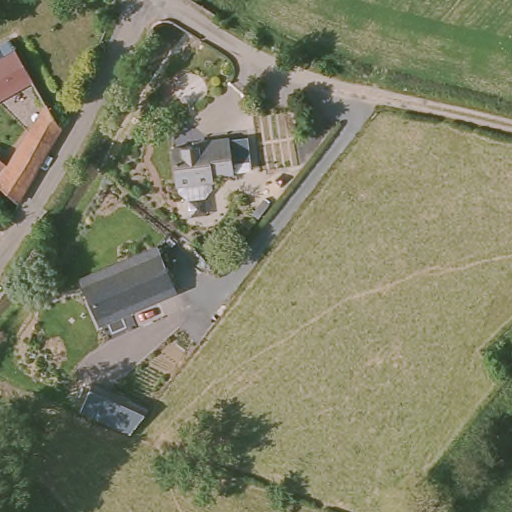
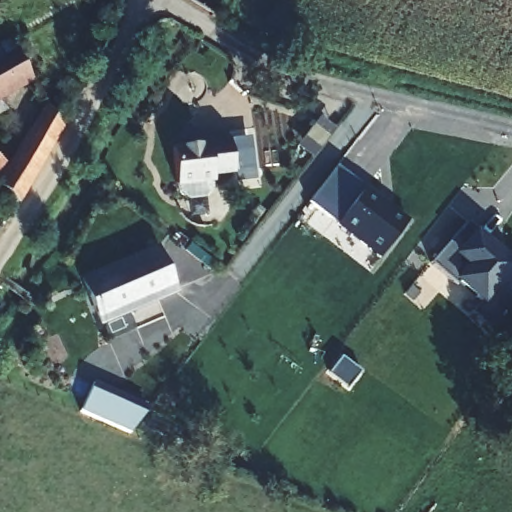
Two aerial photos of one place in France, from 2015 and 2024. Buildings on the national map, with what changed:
unchanged [(27,79),(0,95),(0,47),(7,44),(27,79)]
unchanged [(20,207),(0,189),(0,160),(5,164),(40,105),(66,128),(20,207)]
unchanged [(183,146),(182,141),(200,139),(201,144),(230,140),(247,138),(252,169),(214,174),(215,182),(210,182),(210,190),(202,197),(190,199),(180,192),(178,184),(172,147),(183,146)]
new [(366,187),(365,187),(336,226),(307,204),(335,167),(366,187)]
new [(336,226),(366,187),(409,220),(379,258),(336,226)]
new [(490,326),(476,313),(483,305),(437,265),(465,233),(468,237),(477,227),(512,256),(512,299),(490,326)]
unchanged [(100,323),(82,283),(135,258),(135,257),(153,248),(173,291),(100,323)]
new [(150,406),(131,432),(80,412),(94,381),(150,406)]

